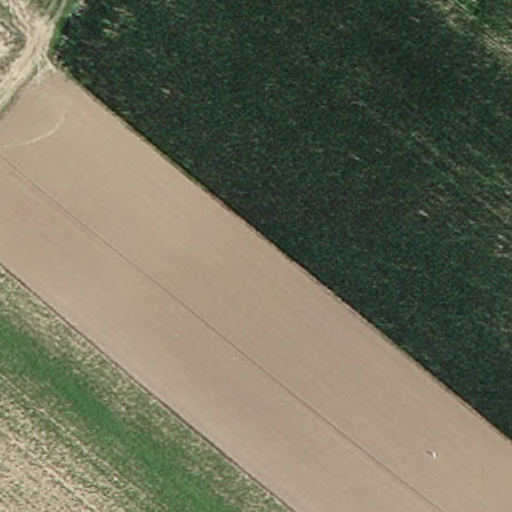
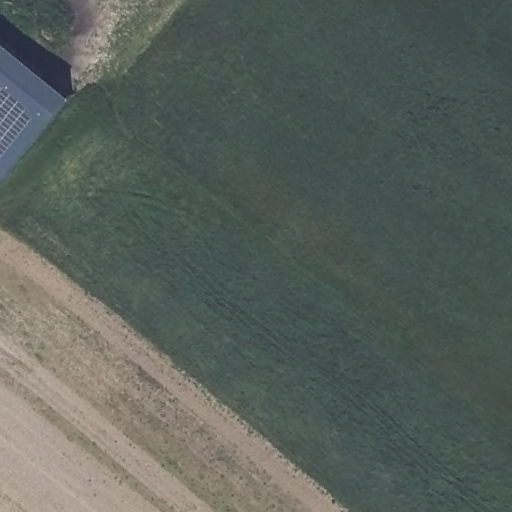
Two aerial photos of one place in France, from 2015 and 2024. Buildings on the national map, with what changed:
demolished [(0,60),(0,21),(18,36),(0,60)]
new [(0,186),(0,33),(75,94),(0,186)]

